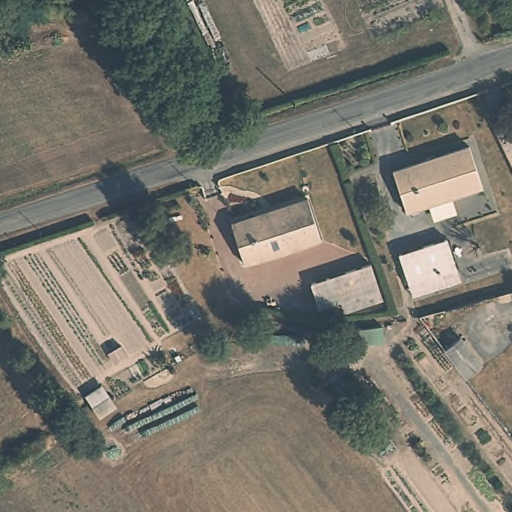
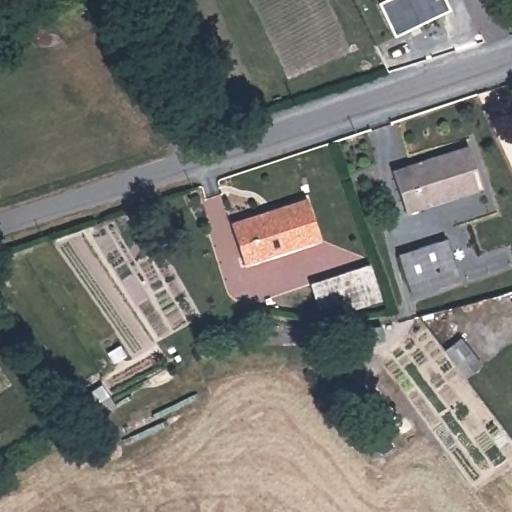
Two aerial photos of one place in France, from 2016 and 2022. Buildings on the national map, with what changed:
new [(380,0),(445,0),(450,10),(395,37),(377,1),(380,0)]
unchanged [(483,186),(408,211),(393,171),(470,146),(483,186)]
unchanged [(246,264),(231,224),(307,199),(320,239),(246,264)]
unchanged [(411,296),(407,283),(398,254),(446,238),(456,266),(461,279),(411,296)]
unchanged [(378,289),(319,309),(311,283),(370,263),(378,289)]
unchanged [(472,365),(460,374),(450,360),(438,346),(439,346),(455,334),(466,348),(476,362),(472,365)]

